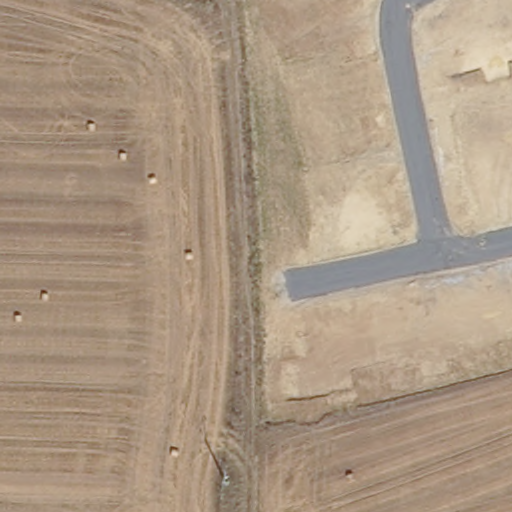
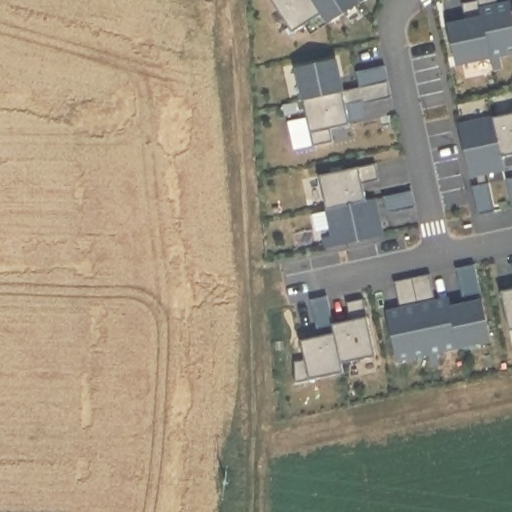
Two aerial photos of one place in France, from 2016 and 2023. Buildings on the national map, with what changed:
new [(361,7),(330,27),(323,17),(292,36),(269,0),(356,0),(361,7)]
new [(504,71),(495,73),(492,61),(479,4),(478,0),(496,0),(498,9),(512,6),(512,56),(501,59),(504,71)]
new [(467,24),(463,7),(479,4),(492,61),(457,68),(448,29),(467,24)]
new [(336,62),(342,94),(303,102),(296,70),(336,62)]
new [(360,90),(356,74),(385,68),(388,84),(392,100),(363,106),(362,103),(346,107),(350,127),(331,132),(334,144),(314,148),(303,102),(342,94),(360,90)]
new [(512,160),(502,162),(493,122),(512,118),(512,160)]
new [(493,122),(502,162),(505,174),(471,182),(459,130),(493,122)]
new [(374,167),(377,184),(361,188),(365,205),(325,213),(317,179),(374,167)]
new [(512,204),(507,181),(512,180),(512,204)]
new [(489,185),(495,214),(478,218),(472,188),(489,185)]
new [(410,195),(414,212),(385,218),(382,201),(410,195)]
new [(330,239),(325,213),(365,205),(373,203),(381,240),(322,252),(321,241),(330,239)]
new [(475,268),(482,300),(463,304),(456,272),(475,268)]
new [(491,348),(460,354),(441,359),(443,371),(432,374),(428,360),(412,281),(430,278),(436,305),(449,303),(452,312),(482,305),(491,348)]
new [(400,312),(395,285),(412,281),(428,360),(396,368),(387,315),(400,312)]
new [(512,332),(503,296),(512,295),(512,332)]
new [(345,305),(362,301),(373,361),(341,368),(333,341),(332,332),(316,335),(308,301),(325,297),(331,329),(349,326),(345,305)]
new [(305,362),(303,347),(333,341),(341,368),(343,378),(295,386),(295,364),(305,362)]

